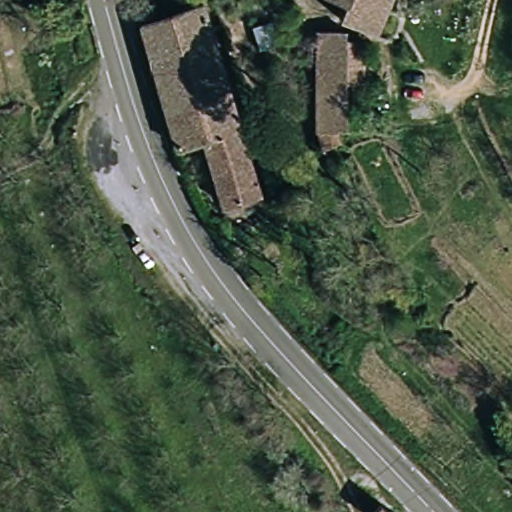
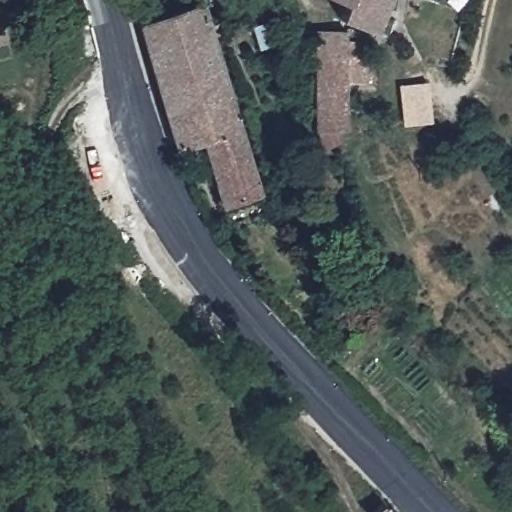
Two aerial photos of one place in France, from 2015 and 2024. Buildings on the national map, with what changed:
unchanged [(378,38),(353,23),(359,11),(342,0),(392,0),(378,38)]
unchanged [(135,26),(205,5),(265,194),(222,208),(200,148),(173,154),(135,26)]
unchanged [(323,33),(352,37),(341,135),(312,134),(323,33)]
new [(431,124),(401,127),(398,85),(428,82),(431,124)]

